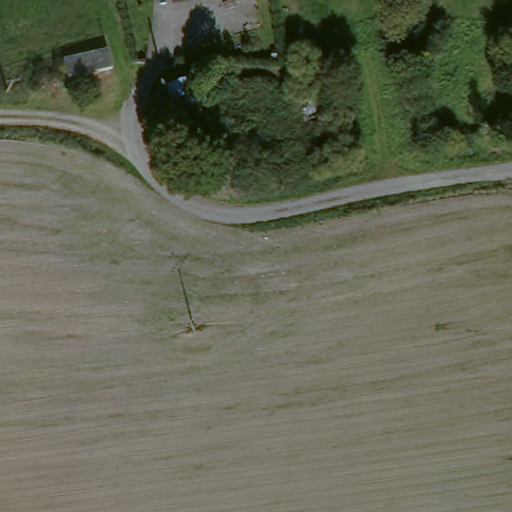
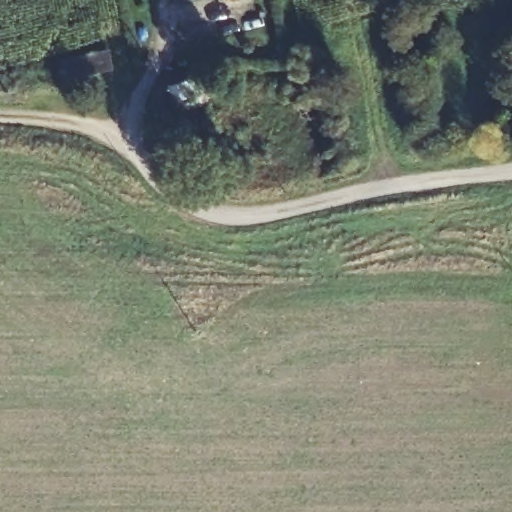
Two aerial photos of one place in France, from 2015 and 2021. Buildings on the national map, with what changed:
unchanged [(66,82),(60,63),(104,53),(109,72),(66,82)]
unchanged [(195,170),(171,87),(199,77),(224,160),(195,170)]

